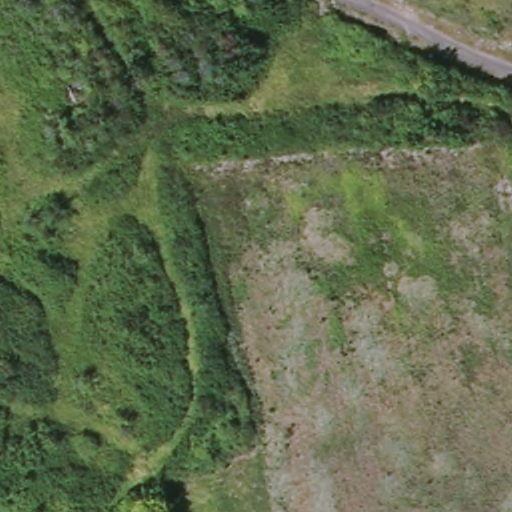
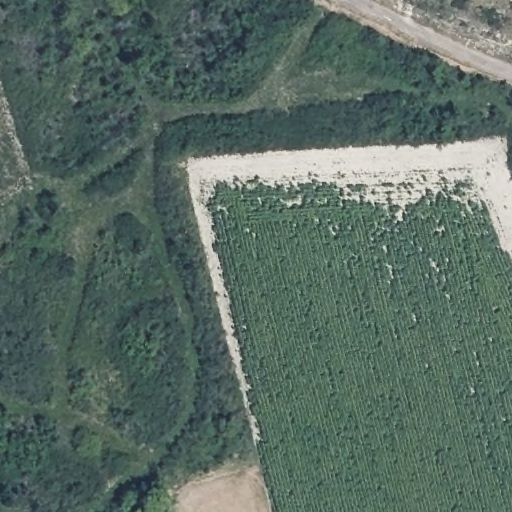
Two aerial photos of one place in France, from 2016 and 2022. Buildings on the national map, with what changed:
unchanged [(85,81),(89,99),(70,104),(68,85),(85,81)]

